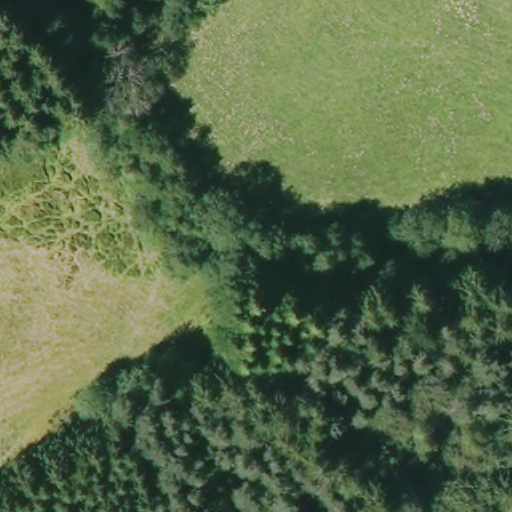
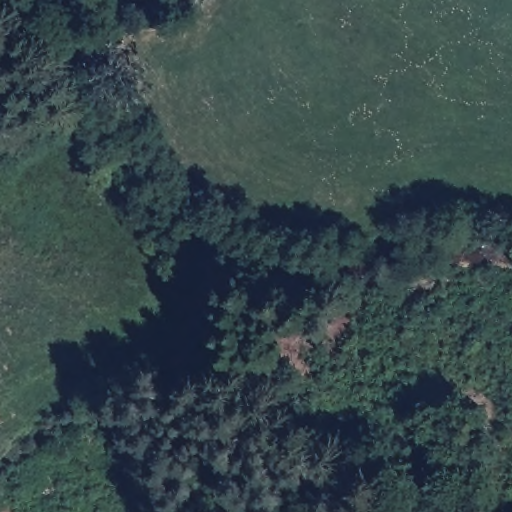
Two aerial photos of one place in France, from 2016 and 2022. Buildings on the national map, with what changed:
[]

